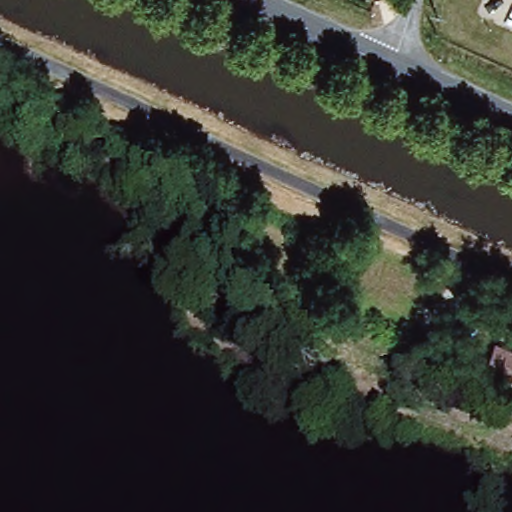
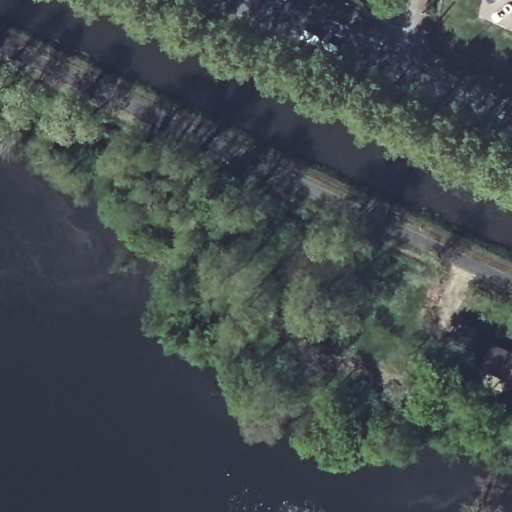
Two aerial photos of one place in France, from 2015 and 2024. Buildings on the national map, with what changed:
unchanged [(512,350),(512,374),(491,364),(501,345),(512,350)]

